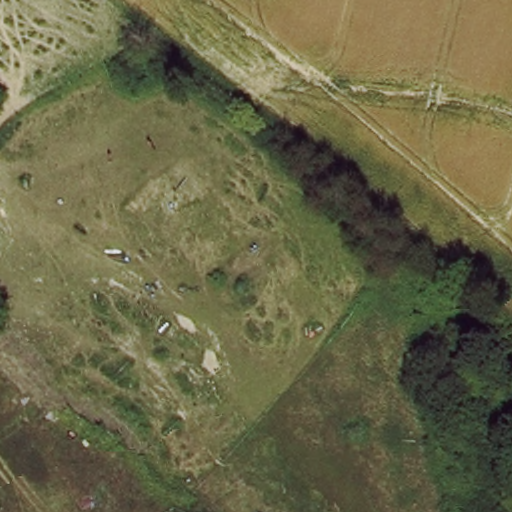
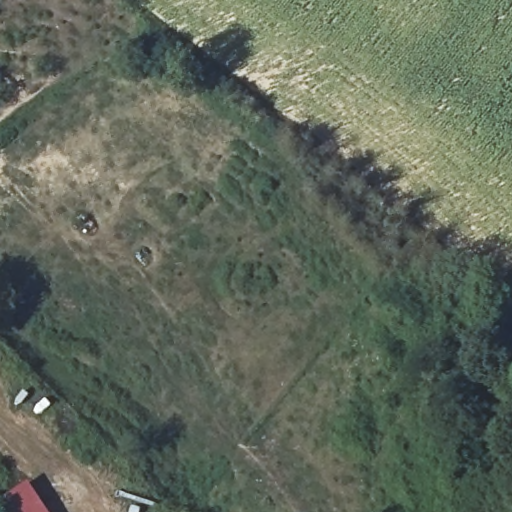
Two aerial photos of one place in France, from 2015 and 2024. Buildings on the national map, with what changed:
new [(49,512),(12,512),(4,500),(30,483),(49,512)]

